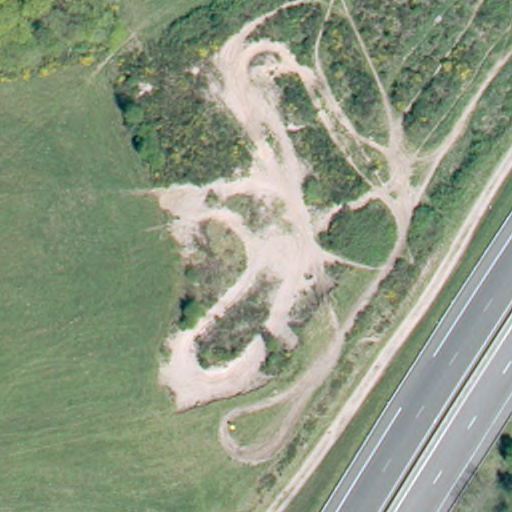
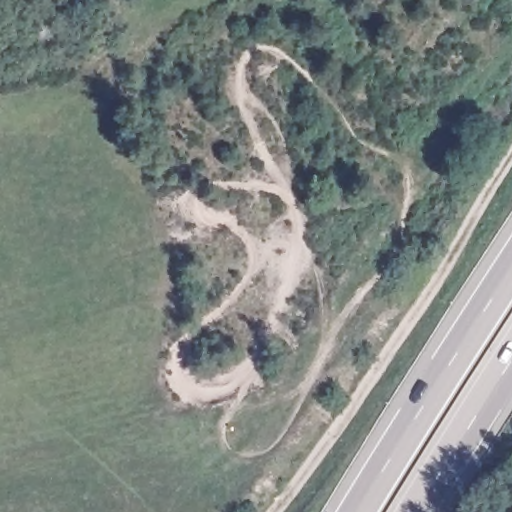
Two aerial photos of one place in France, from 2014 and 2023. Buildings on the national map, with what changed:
[]

